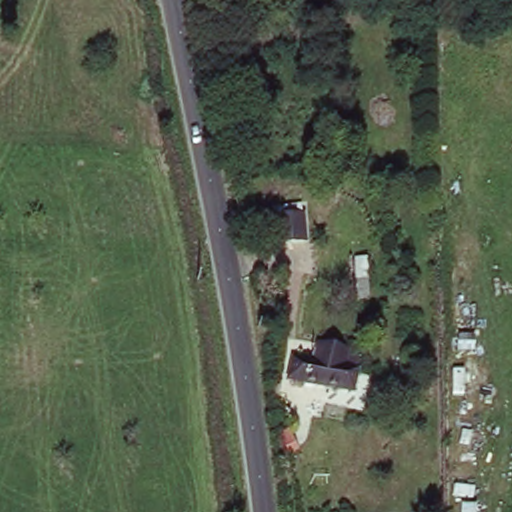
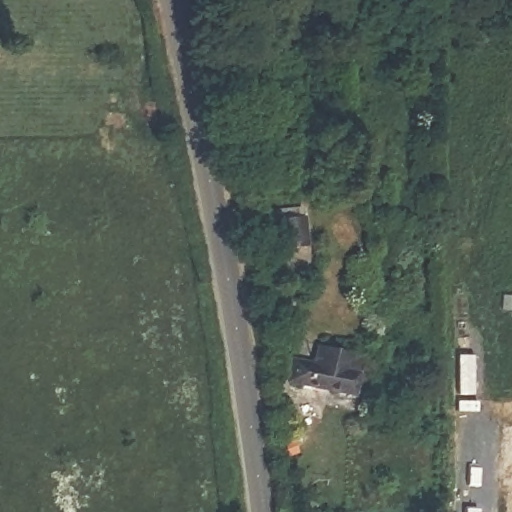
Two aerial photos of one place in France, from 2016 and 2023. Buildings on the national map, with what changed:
unchanged [(303,214),(305,241),(277,246),(274,218),(303,214)]
unchanged [(292,352),(314,356),(317,341),(348,348),(345,363),(359,366),(354,391),(286,378),(292,352)]

